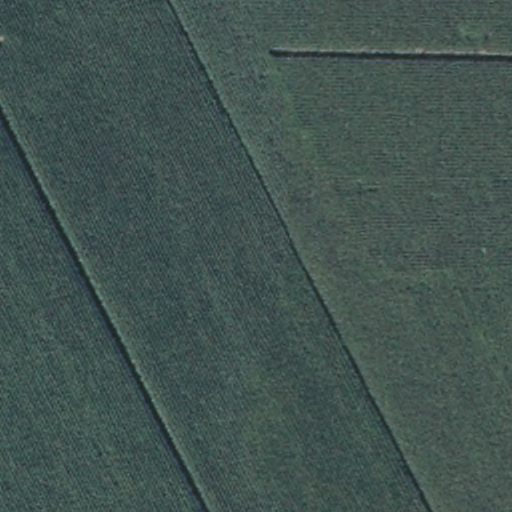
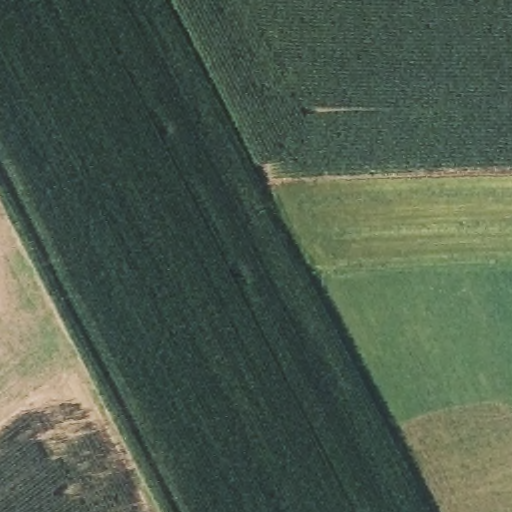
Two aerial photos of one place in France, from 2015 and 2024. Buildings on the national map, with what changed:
[]

